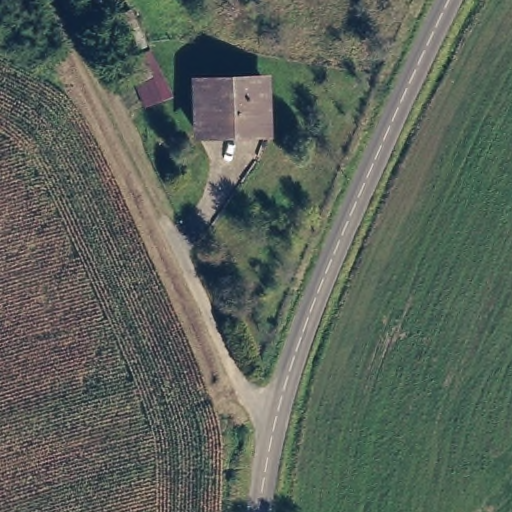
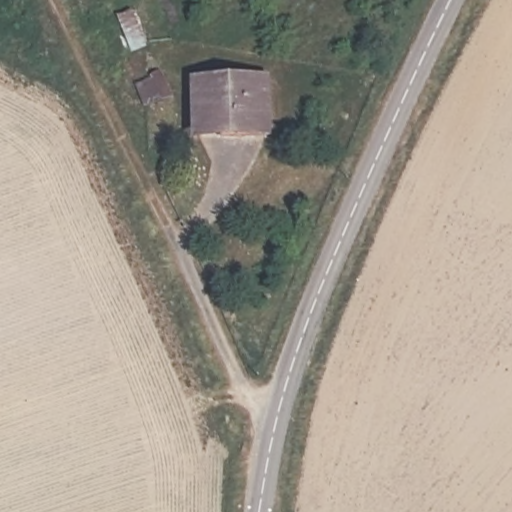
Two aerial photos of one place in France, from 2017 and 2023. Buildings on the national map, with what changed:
unchanged [(99,2),(98,0),(105,0),(99,2)]
unchanged [(264,84),(265,137),(197,141),(195,85),(264,84)]

